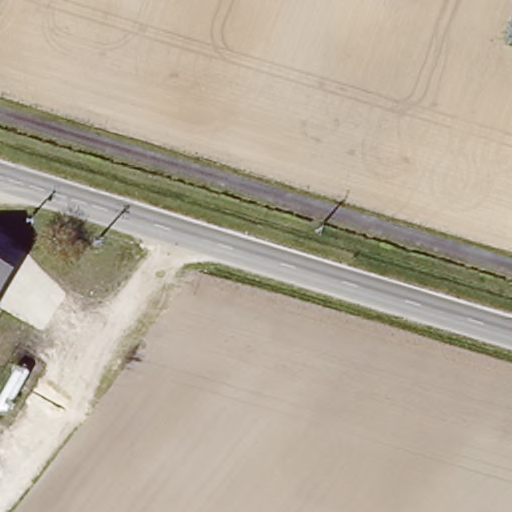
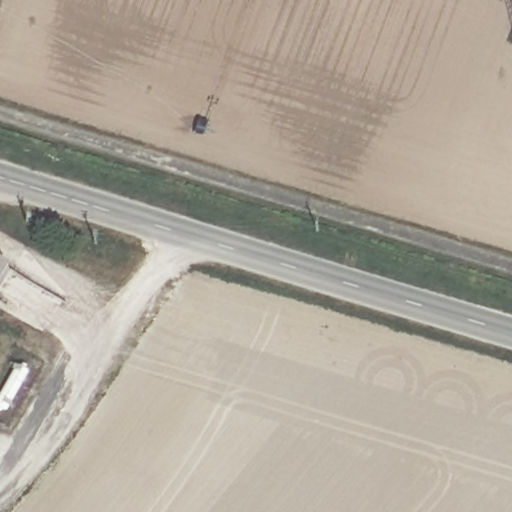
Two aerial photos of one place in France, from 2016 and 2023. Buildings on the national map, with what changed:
unchanged [(0,283),(0,272),(5,275),(0,283)]

